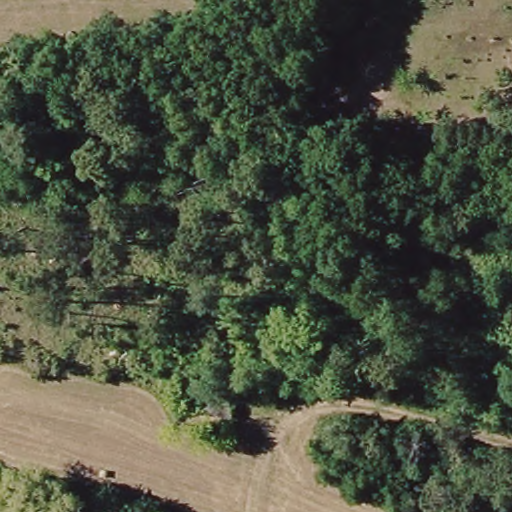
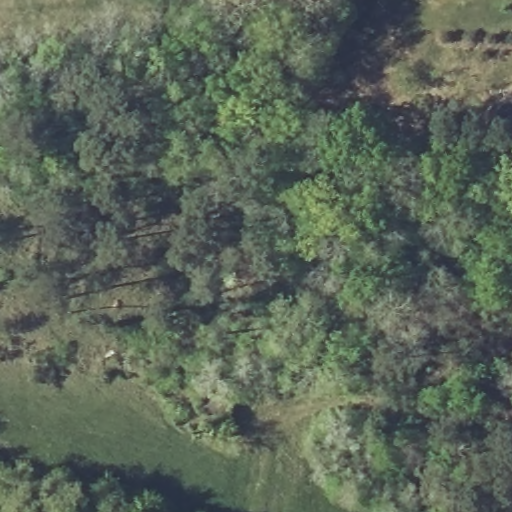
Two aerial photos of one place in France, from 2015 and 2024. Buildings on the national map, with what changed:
unchanged [(195,402),(222,408),(219,425),(190,418),(195,402)]

